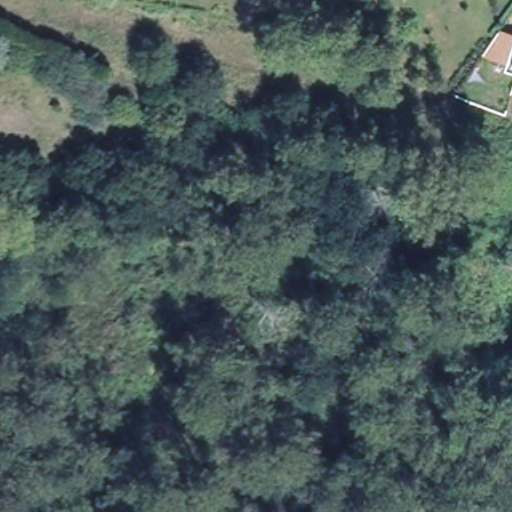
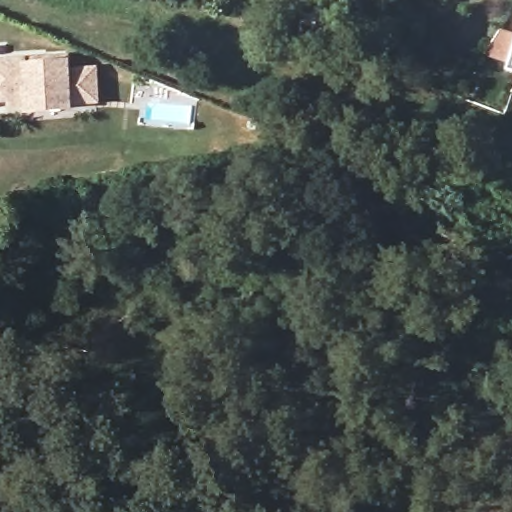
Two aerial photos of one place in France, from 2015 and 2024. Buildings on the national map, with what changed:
unchanged [(512,58),(510,64),(482,55),(500,31),(512,34),(512,58)]
new [(27,113),(27,109),(12,110),(12,102),(0,103),(0,64),(45,61),(66,61),(66,66),(67,75),(94,73),(96,105),(68,106),(68,110),(27,113)]
unchanged [(512,68),(512,72),(511,71),(512,68)]

